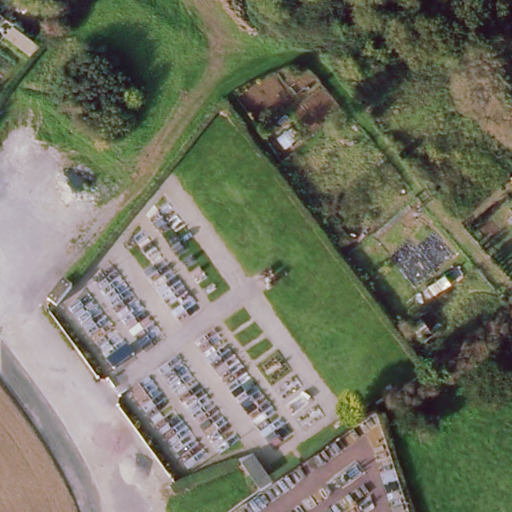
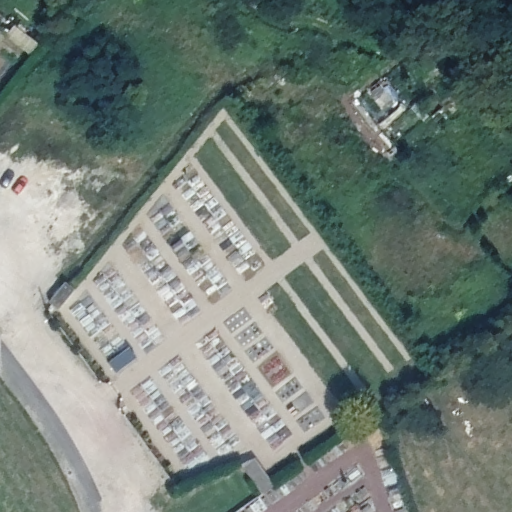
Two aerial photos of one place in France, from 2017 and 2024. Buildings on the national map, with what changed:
unchanged [(261,494),(240,463),(253,457),(273,486),(261,494)]

